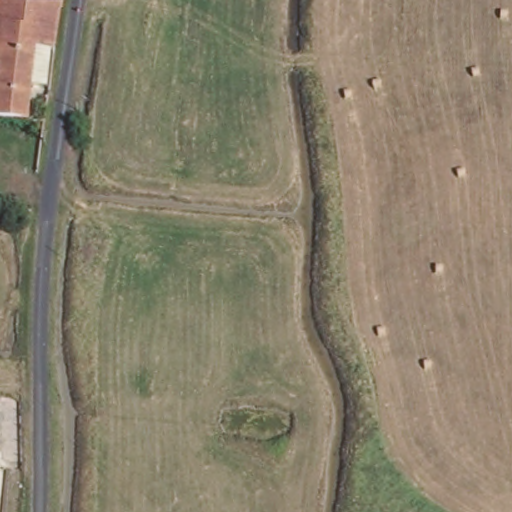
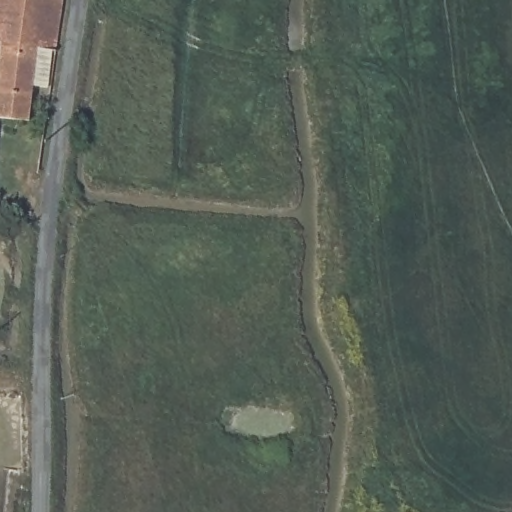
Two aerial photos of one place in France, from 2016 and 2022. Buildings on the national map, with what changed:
unchanged [(46,0),(59,2),(44,98),(31,96),(27,129),(0,125),(0,0),(46,0)]

